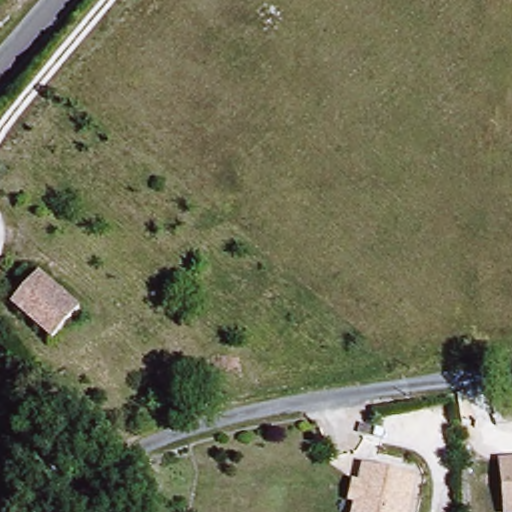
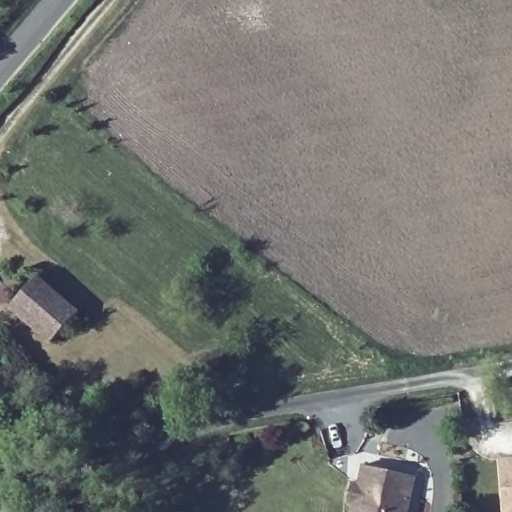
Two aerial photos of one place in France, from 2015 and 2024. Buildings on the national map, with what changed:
unchanged [(16,301),(45,275),(79,313),(51,339),(16,301)]
unchanged [(503,457),(512,456),(512,511),(508,511),(507,498),(503,457)]
unchanged [(350,505),(343,503),(347,485),(354,488),(359,466),(410,477),(403,512),(349,512),(350,505)]

